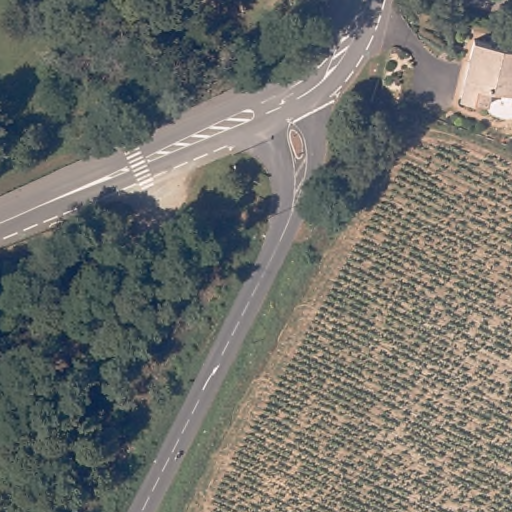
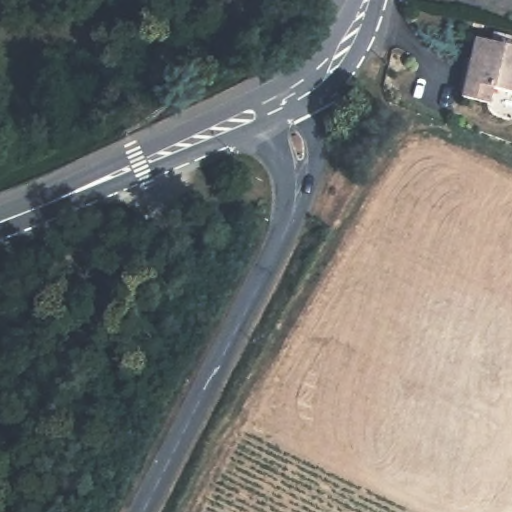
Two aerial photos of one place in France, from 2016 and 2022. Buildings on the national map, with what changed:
unchanged [(493,103),(464,96),(479,38),(512,46),(512,93),(496,90),(493,103)]

